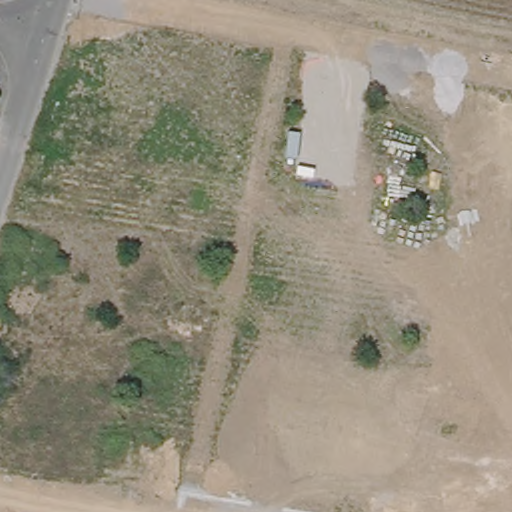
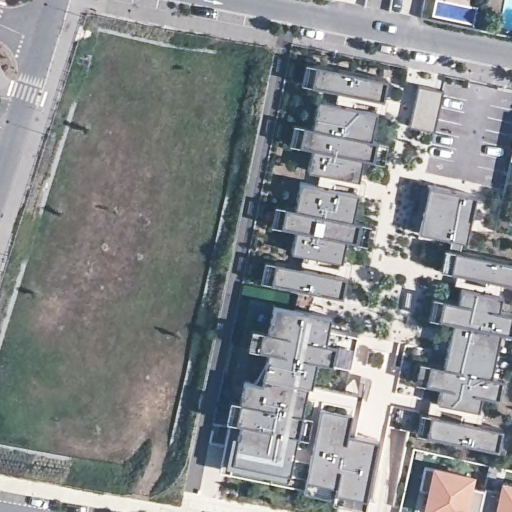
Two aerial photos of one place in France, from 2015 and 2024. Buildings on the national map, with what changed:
new [(379,96),(308,81),(297,78),(301,58),(312,61),(383,76),(379,96)]
new [(432,131),(407,126),(415,82),(441,87),(432,131)]
new [(337,95),(348,97),(350,90),(358,92),(356,98),(374,102),(372,109),(336,101),(337,95)]
new [(380,158),(368,156),(358,154),(352,177),(305,167),(310,143),(293,140),(283,138),(287,120),(297,122),(307,124),(313,96),(372,109),(366,137),(372,138),(384,140),(380,158)]
new [(512,139),(512,157),(508,156),(512,139)]
new [(331,172),(330,179),(356,185),(355,191),(319,183),(320,176),(324,177),(325,171),(331,172)]
new [(362,241),(350,238),(342,237),(337,258),(287,247),(292,226),(276,223),(264,220),(269,201),(280,203),(292,206),(297,178),(355,190),(349,218),(354,219),(367,222),(362,241)]
new [(463,240),(415,229),(410,228),(421,182),(426,183),(473,194),(463,240)]
new [(436,267),(441,247),(451,249),(512,262),(512,283),(447,269),(436,267)]
new [(337,258),(336,265),(319,261),(317,268),(306,265),(309,252),(337,258)]
new [(338,293),(268,278),(255,275),(259,256),(272,258),(342,274),(338,293)]
new [(484,277),(483,283),(480,282),(479,289),(470,287),(471,281),(462,279),(464,273),(484,277)]
new [(493,310),(511,314),(507,331),(495,328),(485,373),(497,376),(493,394),(477,391),(473,408),(432,398),(436,381),(421,378),(425,359),(438,362),(449,318),(434,314),(423,312),(427,294),(438,297),(452,300),(456,284),(497,294),(493,310)]
new [(210,416),(224,420),(230,421),(243,398),(239,395),(252,374),(256,375),(266,358),(263,355),(273,339),(277,340),(289,318),(284,316),(291,304),(327,312),(324,324),(354,330),(347,363),(312,355),(307,381),(359,392),(350,430),(373,435),(359,501),(328,494),(329,489),(226,467),(224,441),(219,439),(205,435),(210,416)]
new [(312,355),(347,363),(341,388),(307,381),(312,355)]
new [(455,403),(454,409),(457,410),(456,417),(435,412),(436,406),(445,408),(446,401),(455,403)]
new [(494,446),(423,430),(411,427),(415,408),(427,411),(498,427),(494,446)]
new [(467,473),(465,483),(480,486),(474,512),(443,512),(421,507),(425,487),(416,485),(421,462),(467,473)]
new [(481,484),(497,488),(499,480),(512,483),(512,512),(474,512),(480,486),(481,484)]

